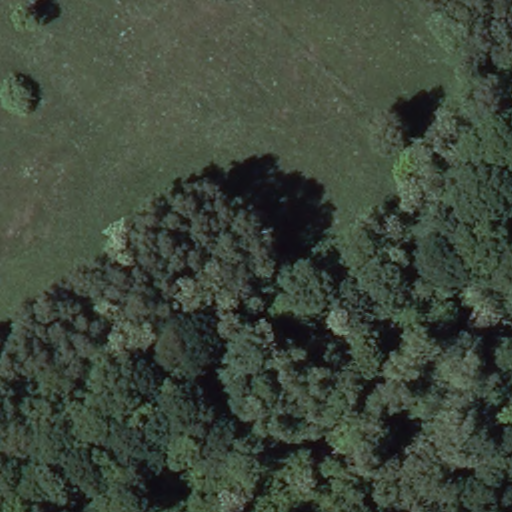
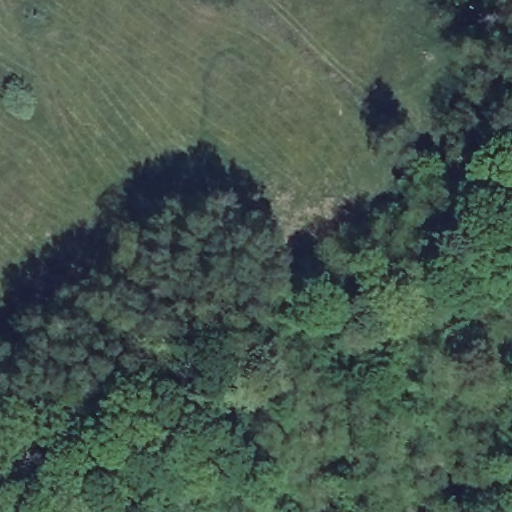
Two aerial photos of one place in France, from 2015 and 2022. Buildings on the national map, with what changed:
[]

